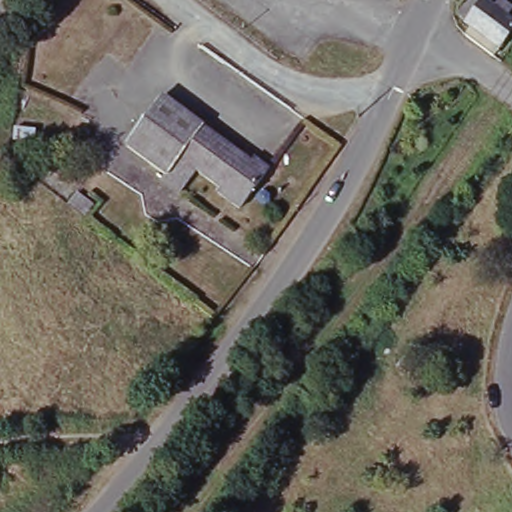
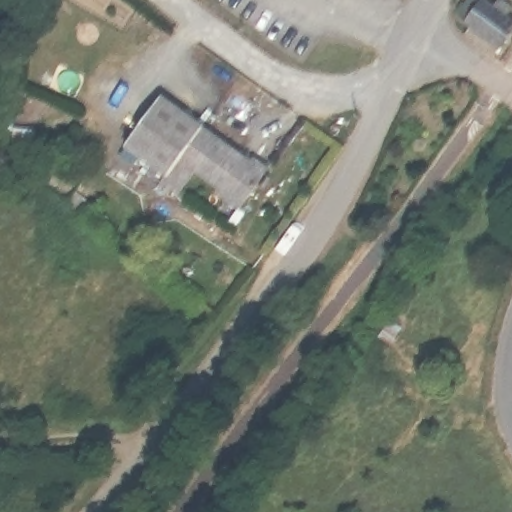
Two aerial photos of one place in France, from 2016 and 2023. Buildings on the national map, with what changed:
unchanged [(457,18),(472,0),(484,0),(512,22),(512,39),(501,54),(457,18)]
unchanged [(161,180),(122,152),(160,100),(250,166),(252,161),(271,174),(242,216),(220,200),(223,195),(192,173),(176,196),(159,185),(161,180)]

